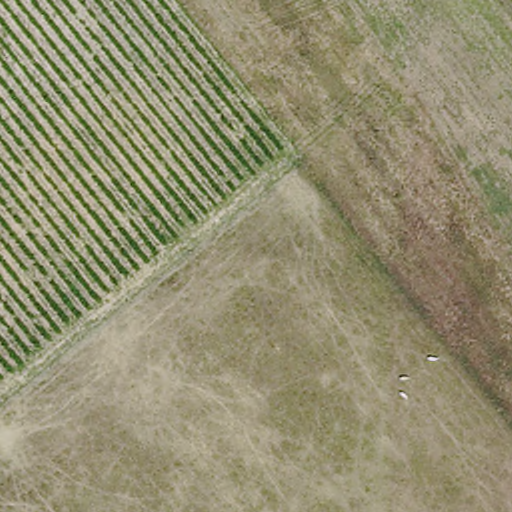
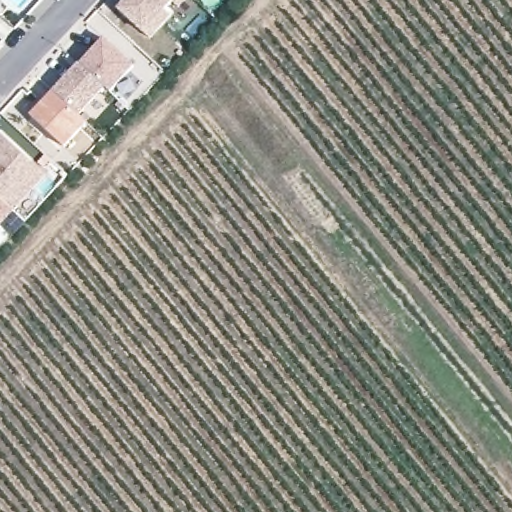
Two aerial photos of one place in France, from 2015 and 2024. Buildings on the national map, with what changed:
new [(178,7),(173,1),(165,11),(169,15),(150,36),(137,24),(118,10),(127,0),(184,0),(178,7)]
new [(82,62),(105,40),(133,65),(110,90),(82,62)]
new [(85,126),(61,151),(30,121),(52,96),(85,126)]
new [(42,171),(10,205),(0,196),(0,131),(42,171)]
new [(10,205),(0,216),(0,196),(10,205)]

